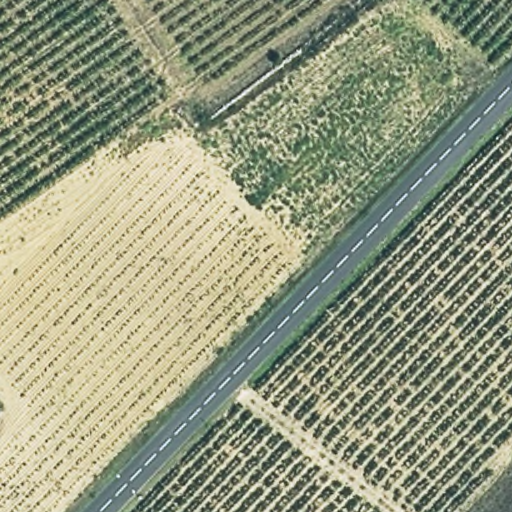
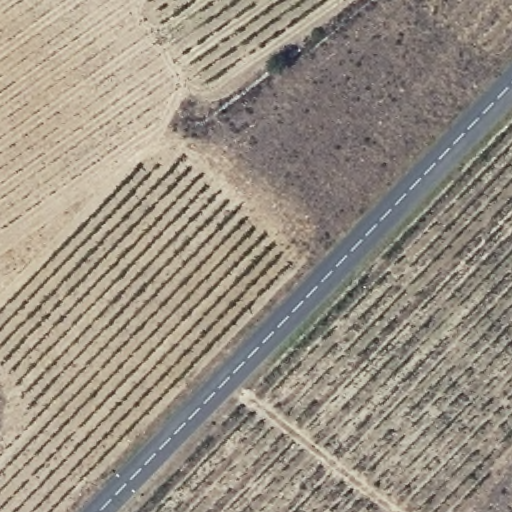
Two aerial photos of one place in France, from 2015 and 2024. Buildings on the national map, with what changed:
unchanged [(440,505),(447,512),(432,512),(440,505)]

